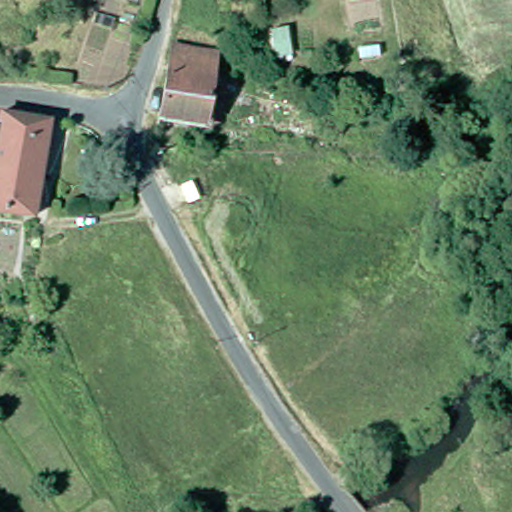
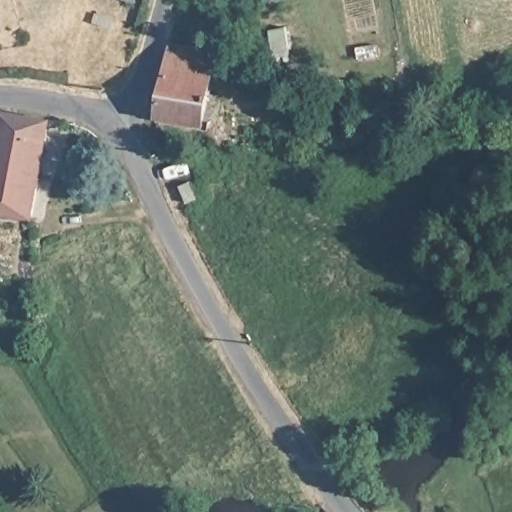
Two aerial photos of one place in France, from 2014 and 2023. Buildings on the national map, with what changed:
unchanged [(213,60),(227,74),(223,100),(207,96),(201,130),(155,122),(168,51),(213,60)]
unchanged [(507,94),(502,72),(512,70),(512,93),(507,94)]
unchanged [(37,227),(0,222),(0,161),(5,132),(6,123),(54,130),(37,227)]
unchanged [(0,161),(0,132),(5,132),(0,161)]

